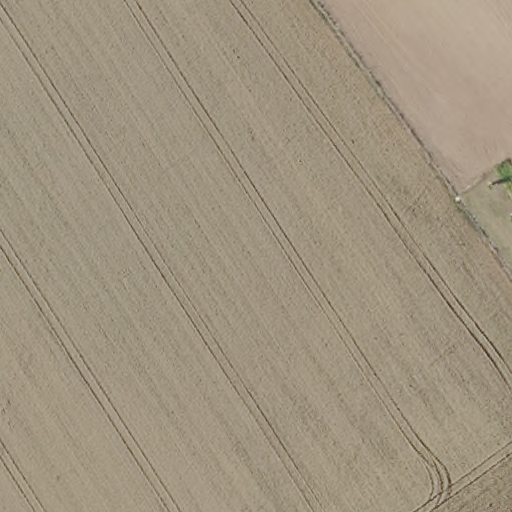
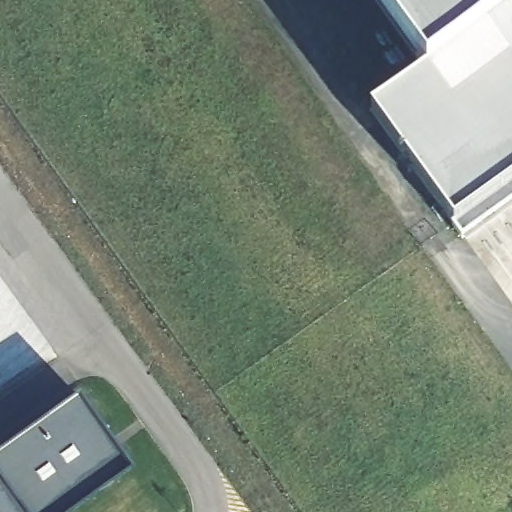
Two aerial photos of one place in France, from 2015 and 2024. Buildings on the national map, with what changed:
new [(373,109),(429,67),(380,0),(512,0),(512,202),(462,237),(373,109)]
new [(128,465),(63,512),(15,512),(0,492),(0,446),(75,392),(128,465)]
unchanged [(0,512),(0,492),(15,512),(0,512)]

